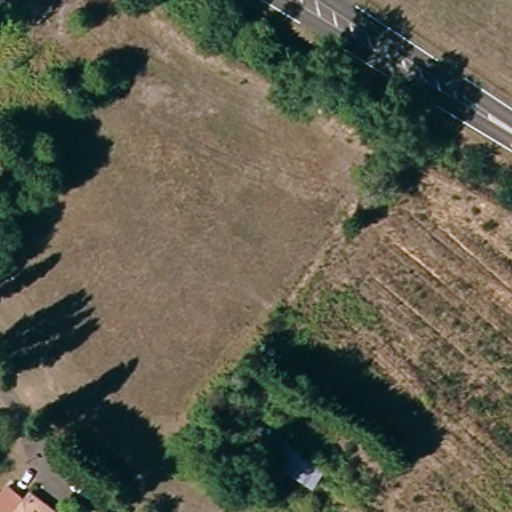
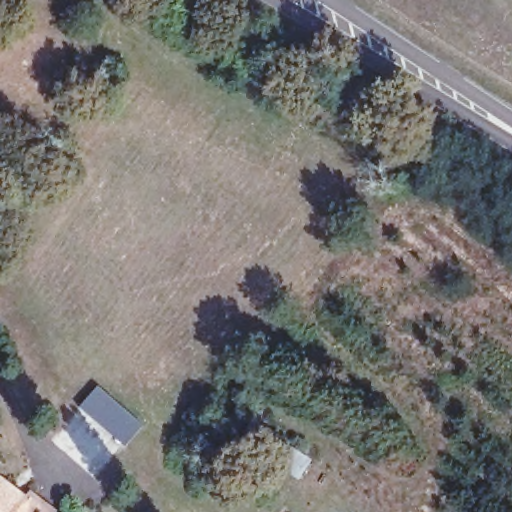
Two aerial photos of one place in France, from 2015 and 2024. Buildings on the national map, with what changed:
new [(142,424),(123,446),(77,407),(97,385),(142,424)]
new [(0,512),(0,475),(21,492),(7,512),(0,512)]
unchanged [(51,502),(45,511),(46,512),(7,512),(26,485),(51,502)]

